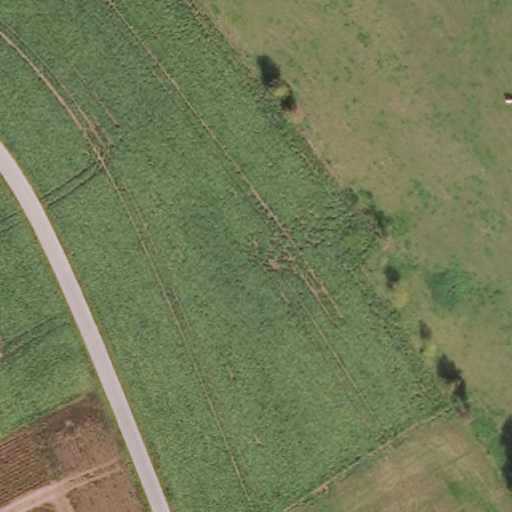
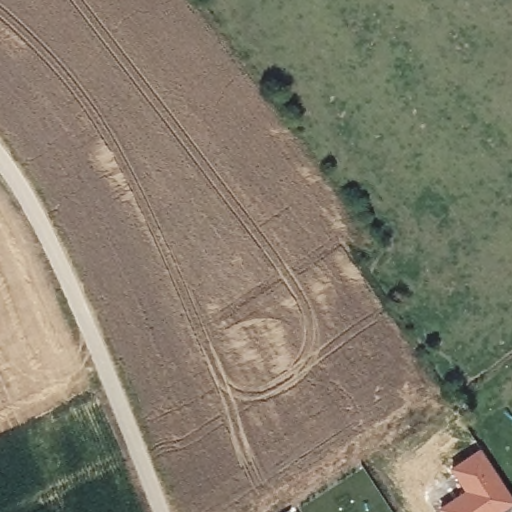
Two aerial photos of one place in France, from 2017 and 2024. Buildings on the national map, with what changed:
new [(443,512),(439,506),(466,490),(451,468),(481,447),(512,496),(512,504),(500,512),(443,512)]

